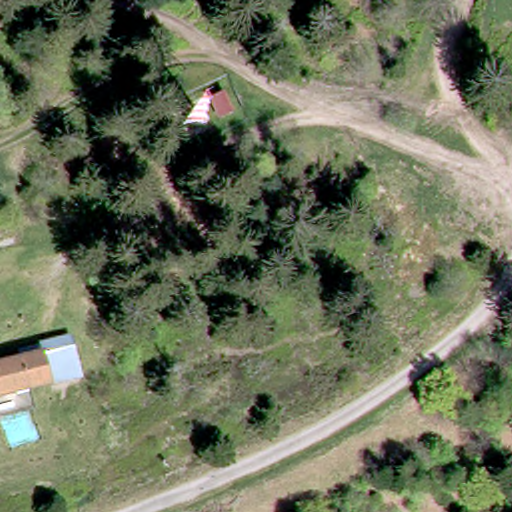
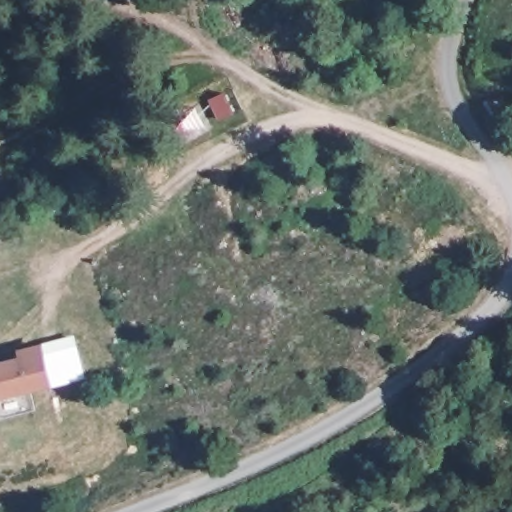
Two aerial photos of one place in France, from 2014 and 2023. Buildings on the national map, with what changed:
unchanged [(227,90),(237,114),(220,121),(210,103),(227,90)]
unchanged [(84,374),(24,385),(30,406),(0,415),(0,362),(25,356),(22,347),(71,336),(84,374)]

